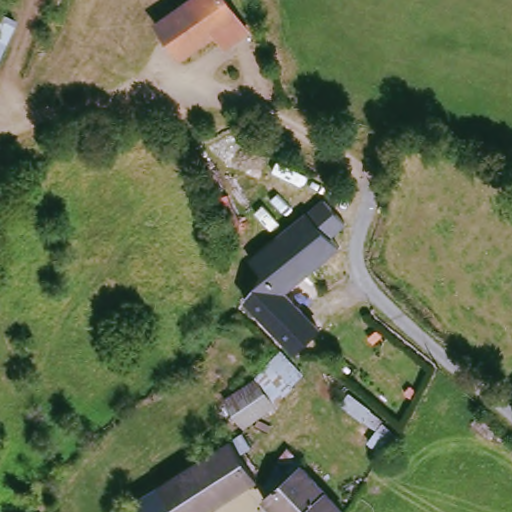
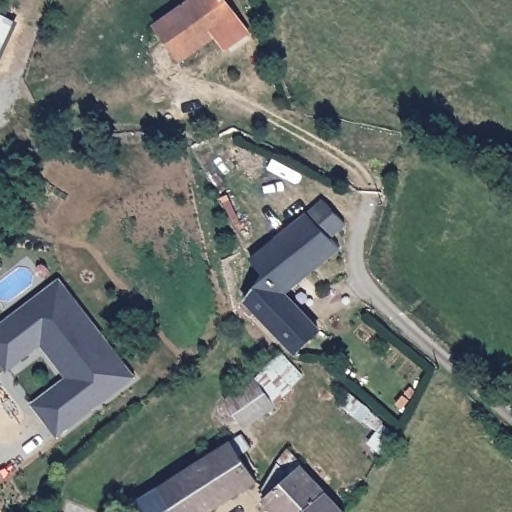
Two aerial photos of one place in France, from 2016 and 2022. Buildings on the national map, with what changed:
unchanged [(217,43),(177,67),(150,28),(188,0),(229,0),(255,37),(230,61),(217,43)]
unchanged [(18,24),(0,65),(0,12),(18,24)]
unchanged [(283,317),(305,348),(290,359),(248,302),(264,290),(249,271),(245,262),(313,211),(335,235),(322,245),(330,258),(285,290),(297,307),(283,317)]
new [(65,377),(41,346),(7,370),(0,362),(0,325),(59,278),(135,377),(58,436),(31,404),(65,377)]
unchanged [(280,409),(242,433),(220,404),(251,381),(277,351),(302,378),(280,409)]
unchanged [(158,491),(234,442),(242,454),(233,460),(252,489),(216,512),(171,512),(158,491)]
unchanged [(285,486),(300,477),(329,512),(277,512),(270,503),(265,484),(276,477),(285,486)]
unchanged [(171,512),(138,512),(135,507),(158,491),(171,512)]

